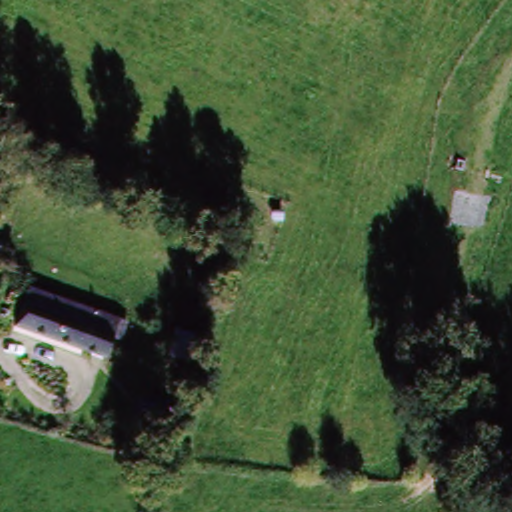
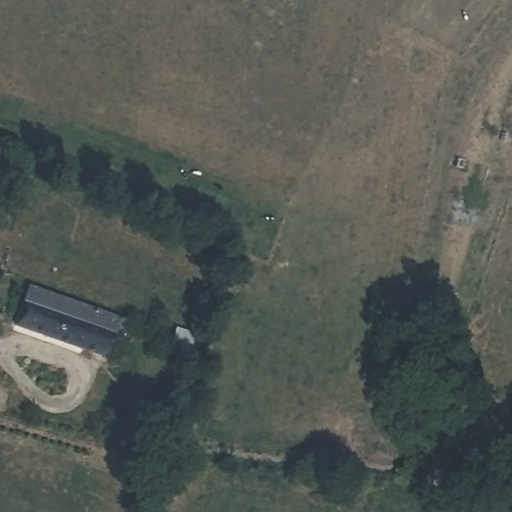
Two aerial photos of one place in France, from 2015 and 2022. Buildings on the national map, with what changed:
unchanged [(127,327),(120,342),(113,340),(103,361),(85,353),(96,329),(27,298),(32,287),(127,327)]
unchanged [(96,329),(85,353),(17,324),(27,298),(96,329)]
unchanged [(160,398),(155,437),(129,433),(133,395),(160,398)]

